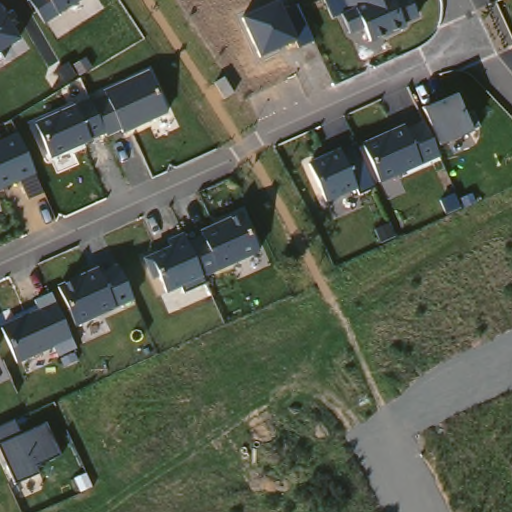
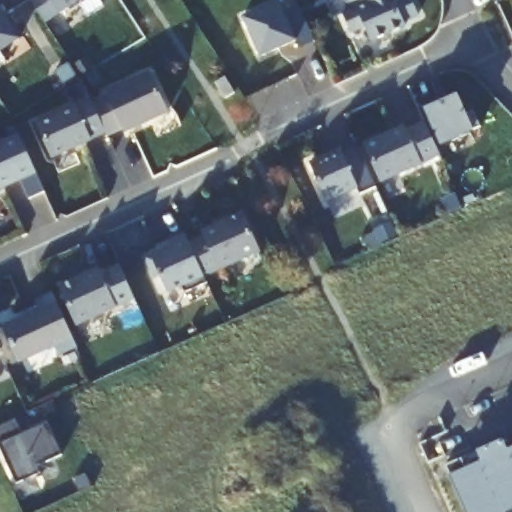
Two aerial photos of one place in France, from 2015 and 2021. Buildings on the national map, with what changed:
unchanged [(45,24),(30,0),(80,0),(61,14),(45,24)]
unchanged [(365,26),(349,34),(342,15),(334,19),(325,0),(412,0),(420,15),(372,41),(365,26)]
unchanged [(300,49),(295,40),(259,59),(241,19),(280,1),(284,10),(298,4),(315,41),(300,49)]
unchanged [(0,51),(0,3),(1,3),(22,36),(0,51)]
unchanged [(124,133),(122,129),(107,136),(105,133),(51,159),(36,124),(91,100),(92,104),(106,97),(104,93),(150,73),(169,111),(124,133)]
unchanged [(472,130),(441,144),(426,106),(457,94),(465,92),(480,126),(472,130)]
unchanged [(380,183),(360,195),(357,189),(327,204),(310,164),(340,149),(342,154),(363,145),(406,125),(408,130),(425,123),(440,156),(380,183)]
unchanged [(46,192),(30,199),(22,180),(0,189),(0,138),(1,140),(17,133),(46,192)]
unchanged [(204,277),(206,284),(185,294),(181,287),(166,293),(159,276),(153,279),(145,259),(190,238),(243,212),(261,250),(204,277)]
unchanged [(78,324),(61,287),(98,269),(102,274),(117,267),(134,299),(78,324)]
unchanged [(59,357),(54,346),(20,362),(5,327),(42,310),(37,300),(52,293),(78,348),(59,357)]
unchanged [(38,465),(41,473),(16,483),(0,446),(0,428),(15,421),(22,433),(47,424),(62,454),(38,465)]
new [(484,449),(503,441),(508,452),(512,450),(512,458),(453,484),(451,478),(446,467),(461,460),(466,471),(489,461),(484,449)]
new [(512,512),(466,512),(453,484),(512,458),(512,512)]

